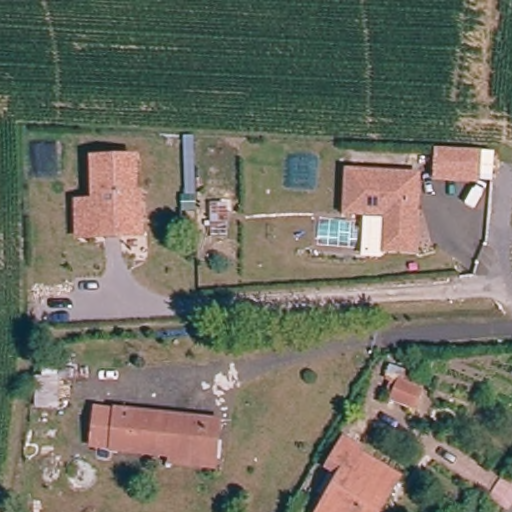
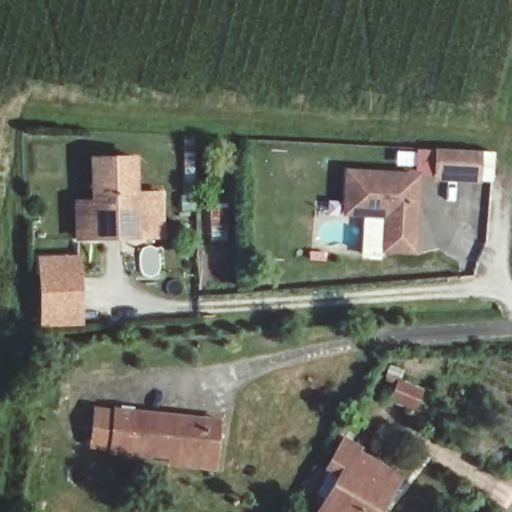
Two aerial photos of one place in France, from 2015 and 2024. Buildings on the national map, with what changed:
unchanged [(436,177),(438,150),(478,152),(494,154),(492,176),(477,175),(476,180),(436,177)]
unchanged [(106,237),(87,237),(87,202),(104,202),(104,159),(145,159),(146,220),(146,237),(106,237)]
unchanged [(376,217),(351,215),(354,175),(423,181),(418,255),(389,253),(373,252),(376,217)]
unchanged [(226,203),(226,223),(211,223),(211,203),(226,203)]
new [(40,327),(37,257),(82,255),(84,327),(40,327)]
unchanged [(429,410),(419,426),(397,413),(407,396),(429,410)]
unchanged [(168,468),(168,458),(109,450),(110,442),(88,437),(92,405),(113,409),(113,402),(205,420),(218,422),(212,463),(211,475),(168,468)]
unchanged [(402,481),(383,512),(325,512),(328,505),(322,502),(328,492),(336,496),(346,477),(333,471),(352,442),(367,452),(363,458),(402,481)]

